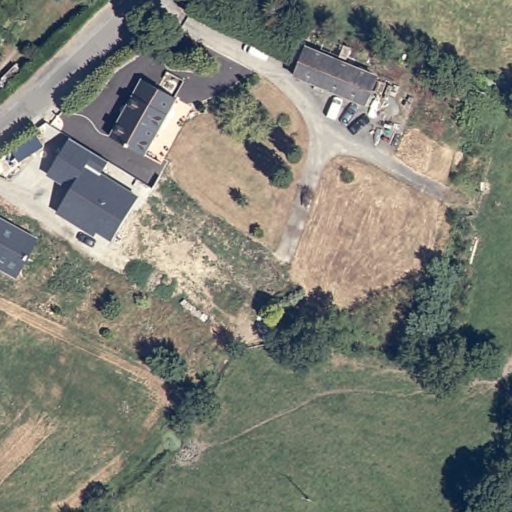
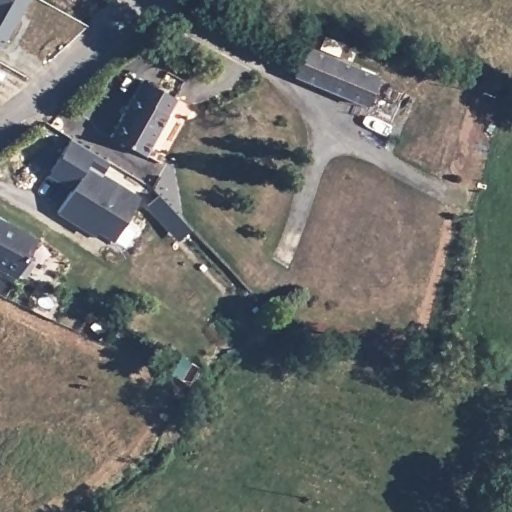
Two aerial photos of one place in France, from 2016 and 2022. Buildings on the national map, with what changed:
new [(1,45),(0,44),(0,0),(27,0),(1,45)]
unchanged [(376,71),(368,101),(302,81),(310,50),(376,71)]
unchanged [(142,82),(178,103),(146,161),(109,139),(142,82)]
unchanged [(69,141),(109,162),(102,175),(139,195),(113,241),(100,233),(96,239),(56,215),(71,190),(46,175),(69,141)]
unchanged [(0,271),(0,221),(36,238),(16,279),(0,271)]

